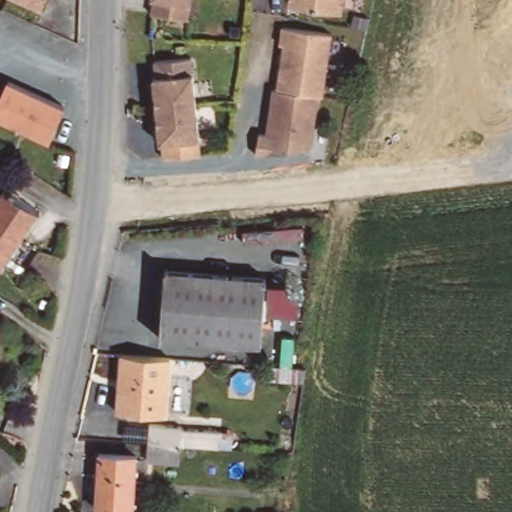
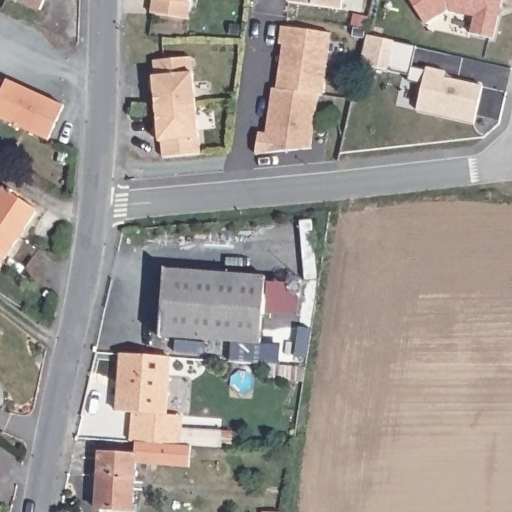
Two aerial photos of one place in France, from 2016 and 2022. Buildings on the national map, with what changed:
unchanged [(30,12),(6,0),(36,0),(30,12)]
unchanged [(184,16),(147,10),(149,0),(187,0),(184,16)]
unchanged [(333,11),(281,1),(281,0),(336,0),(333,11)]
new [(492,38),(468,32),(472,15),(446,9),(423,23),(408,0),(500,0),(498,6),(497,14),(492,38)]
unchanged [(271,90),(275,91),(283,47),(280,47),(283,29),(332,39),(321,99),(317,98),(316,100),(306,153),(250,156),(254,135),(262,136),(271,91),(271,90)]
new [(389,73),(359,66),(367,37),(396,44),(418,49),(414,69),(427,73),(428,70),(448,75),(447,81),(485,89),(476,126),(418,113),(424,88),(409,84),(411,78),(389,73)]
unchanged [(192,110),(195,158),(176,160),(157,161),(157,145),(154,146),(152,113),(149,80),(152,80),(151,64),(188,61),(192,110)]
unchanged [(61,109),(45,142),(0,122),(0,99),(7,84),(61,109)]
unchanged [(1,194),(36,218),(1,270),(0,271),(0,195),(1,194)]
unchanged [(268,275),(268,345),(159,346),(159,276),(268,275)]
unchanged [(138,359),(162,358),(162,413),(115,414),(114,359),(138,359)]
unchanged [(273,376),(311,375),(308,387),(262,388),(262,376),(273,376)]
unchanged [(144,465),(145,444),(147,421),(180,422),(180,425),(225,425),(224,443),(179,444),(177,464),(144,465)]
unchanged [(94,477),(94,456),(135,454),(136,511),(96,512),(95,498),(81,499),(80,477),(94,477)]
unchanged [(278,504),(278,512),(259,512),(259,504),(278,504)]

